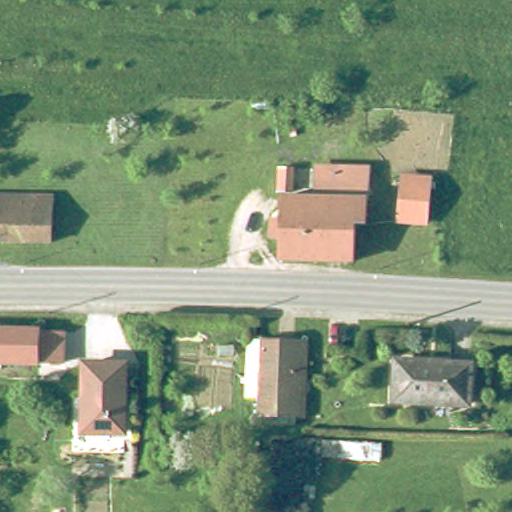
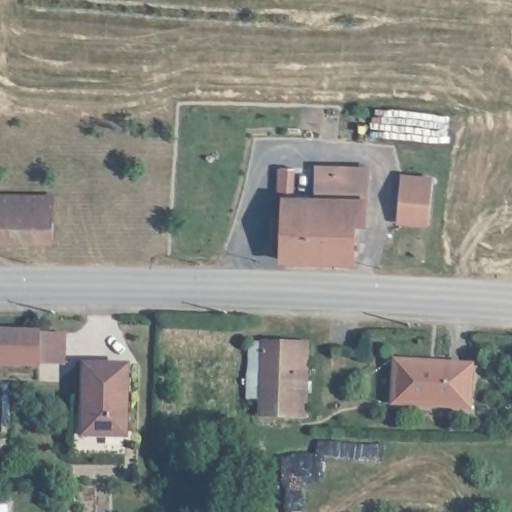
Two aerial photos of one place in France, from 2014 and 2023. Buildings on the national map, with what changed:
unchanged [(274,184),(275,161),(288,162),(287,185),(274,184)]
unchanged [(265,211),(276,212),(277,190),(310,191),(313,163),(347,165),(360,166),(358,196),(357,219),(347,219),(345,256),(275,251),(275,230),(265,230),(265,211)]
unchanged [(393,211),(394,199),(396,172),(424,175),(422,200),(421,212),(393,211)]
unchanged [(29,191),(48,191),(49,237),(29,237),(0,237),(0,191),(29,191)]
unchanged [(44,363),(33,363),(0,363),(0,329),(33,329),(44,329),(44,363)]
unchanged [(267,338),(303,341),(296,416),(262,412),(267,338)]
unchanged [(122,428),(81,427),(82,358),(123,360),(122,428)]
unchanged [(460,399),(387,395),(389,371),(391,361),(398,361),(463,365),(460,399)]

